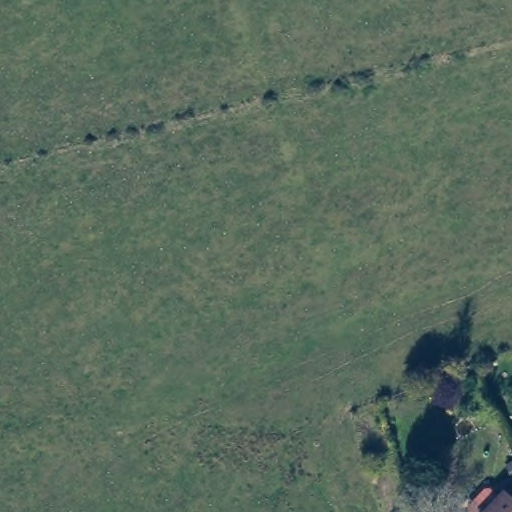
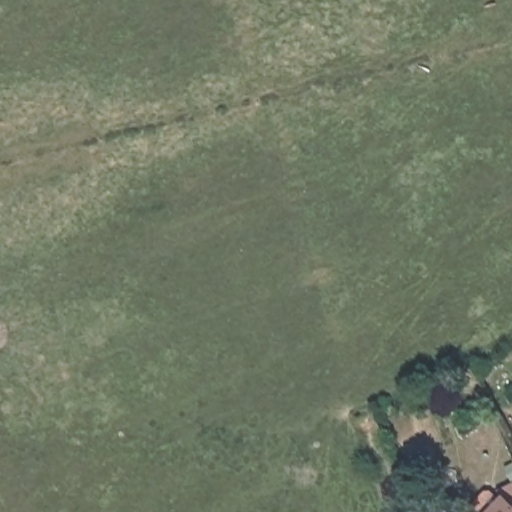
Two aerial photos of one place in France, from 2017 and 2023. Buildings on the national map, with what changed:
unchanged [(505,493),(512,499),(512,512),(485,512),(505,493)]

